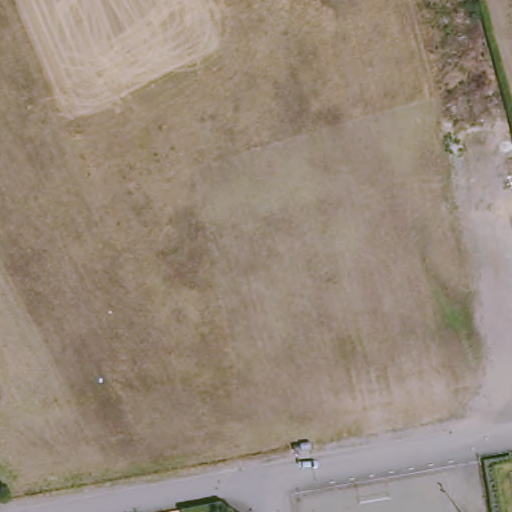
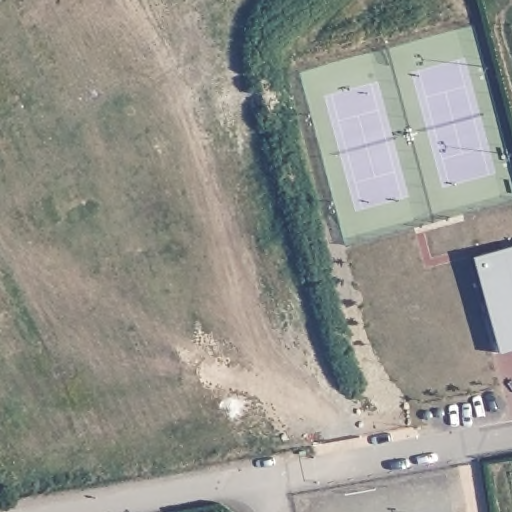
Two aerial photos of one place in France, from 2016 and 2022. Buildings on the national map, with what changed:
new [(512,245),(512,348),(502,351),(477,254),(512,245)]

